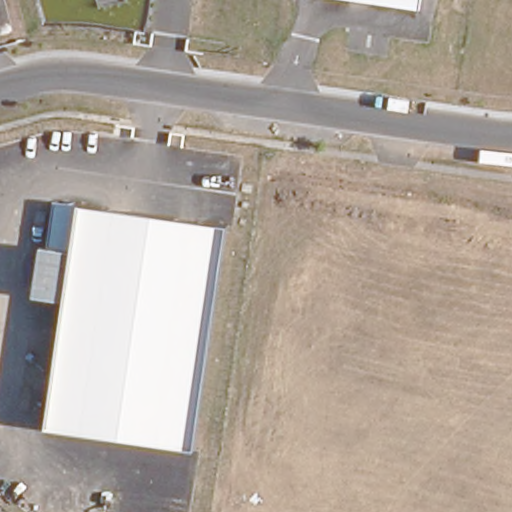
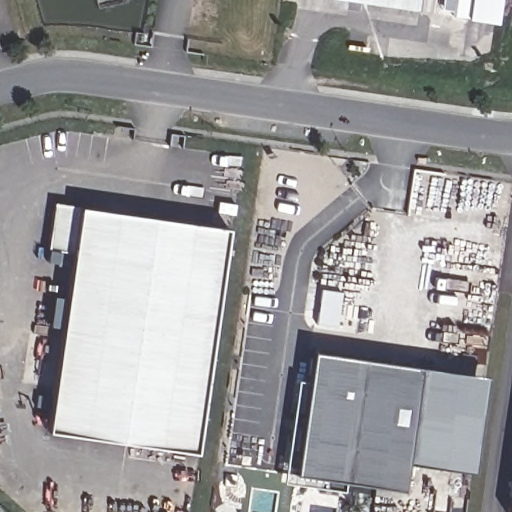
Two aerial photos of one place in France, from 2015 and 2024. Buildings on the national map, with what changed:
unchanged [(418,11),(348,0),(420,0),(418,11)]
new [(497,22),(468,18),(454,16),(456,0),(500,0),(497,22)]
unchanged [(78,206),(227,227),(195,450),(46,428),(65,302),(32,297),(40,247),(47,247),(54,202),(78,206)]
new [(401,488),(293,472),(311,349),(418,365),(401,488)]
new [(483,375),(470,470),(405,461),(418,365),(483,375)]
new [(507,512),(512,478),(512,512),(507,512)]

